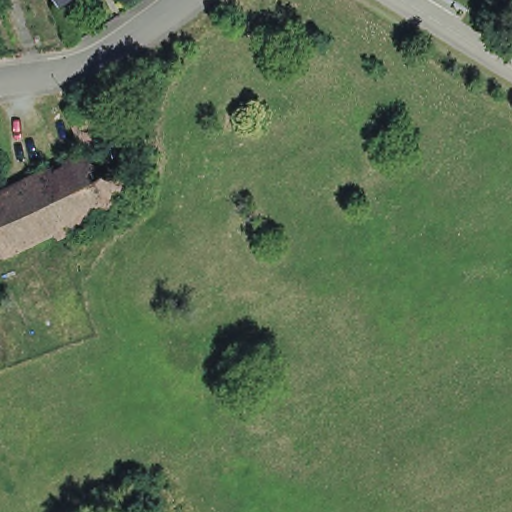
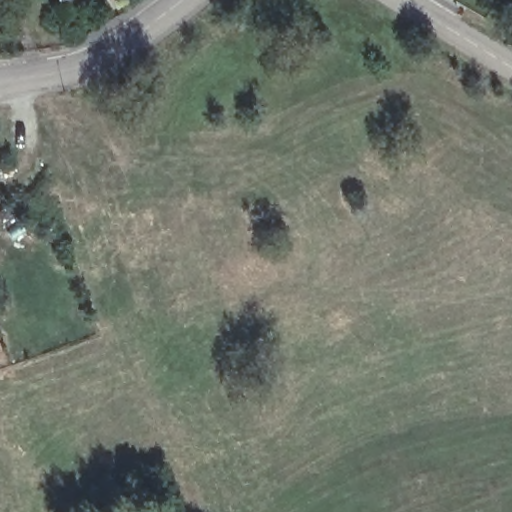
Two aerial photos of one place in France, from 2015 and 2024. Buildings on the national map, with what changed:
demolished [(72,111),(93,103),(93,99),(95,99),(108,129),(83,139),(72,111)]
demolished [(113,143),(132,185),(91,209),(96,219),(58,239),(53,229),(5,254),(8,258),(1,262),(0,259),(0,197),(89,154),(113,143)]

